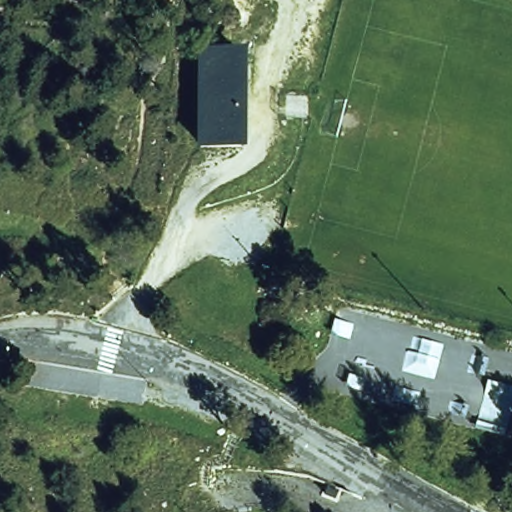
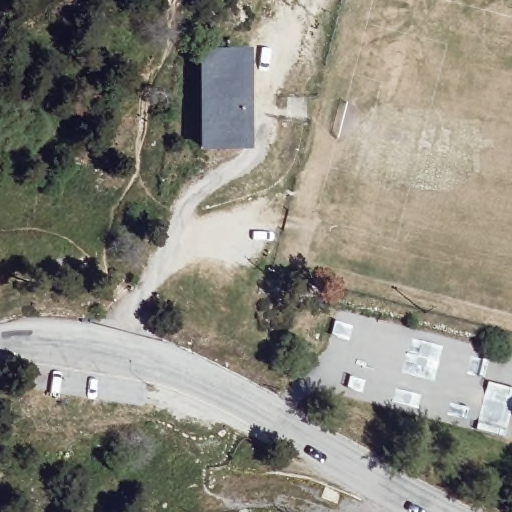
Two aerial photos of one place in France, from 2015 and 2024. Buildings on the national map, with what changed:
unchanged [(243,50),(243,149),(200,148),(200,49),(243,50)]

